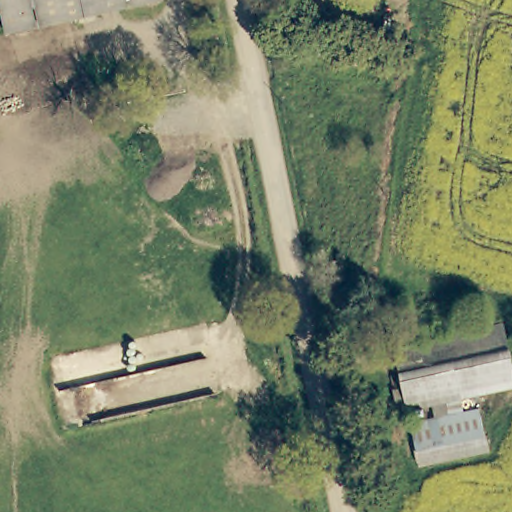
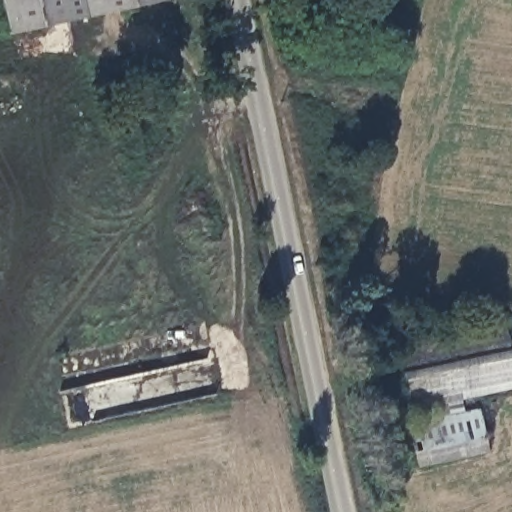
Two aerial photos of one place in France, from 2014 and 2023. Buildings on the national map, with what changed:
unchanged [(12,37),(3,0),(164,0),(12,37)]
unchanged [(506,326),(512,359),(512,385),(407,406),(395,352),(506,326)]
unchanged [(483,412),(489,438),(416,454),(410,428),(483,412)]
unchanged [(493,453),(420,469),(416,454),(489,438),(493,453)]

